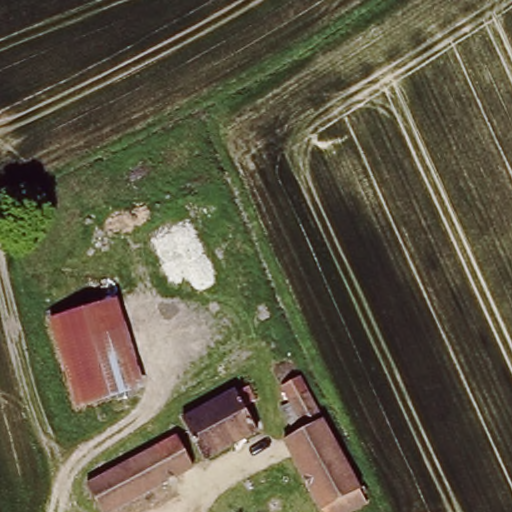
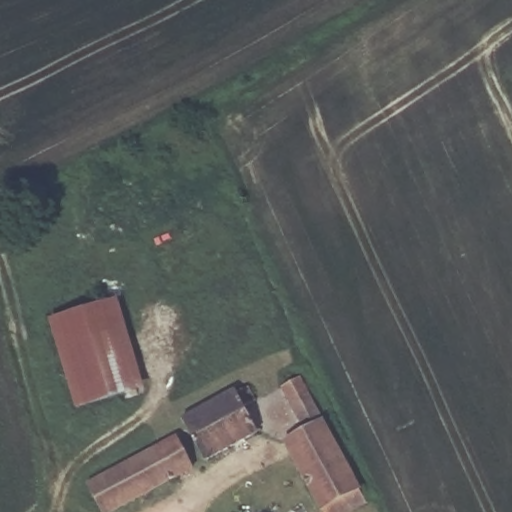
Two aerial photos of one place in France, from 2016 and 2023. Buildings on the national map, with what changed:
unchanged [(121,311),(143,380),(75,401),(52,329),(121,311)]
unchanged [(368,503),(351,512),(318,512),(282,446),(305,434),(280,387),(301,376),(368,503)]
unchanged [(247,388),(255,402),(245,408),(257,431),(205,460),(185,422),(247,388)]
unchanged [(195,470),(115,512),(105,512),(90,485),(178,438),(195,470)]

